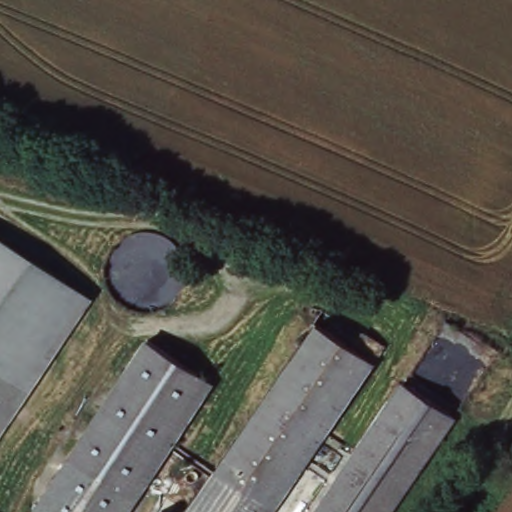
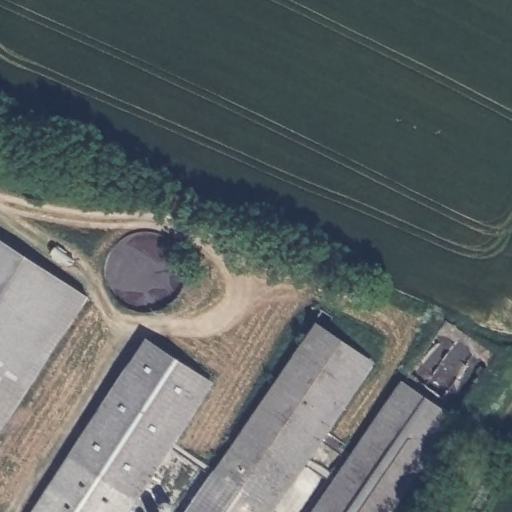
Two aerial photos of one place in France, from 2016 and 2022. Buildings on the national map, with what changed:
unchanged [(86,293),(0,425),(0,237),(86,293)]
unchanged [(220,467),(321,318),(373,353),(264,512),(191,512),(215,476),(220,467)]
unchanged [(117,512),(24,512),(145,337),(209,382),(175,430),(169,438),(117,512)]
unchanged [(389,512),(308,512),(399,377),(453,415),(389,512)]

